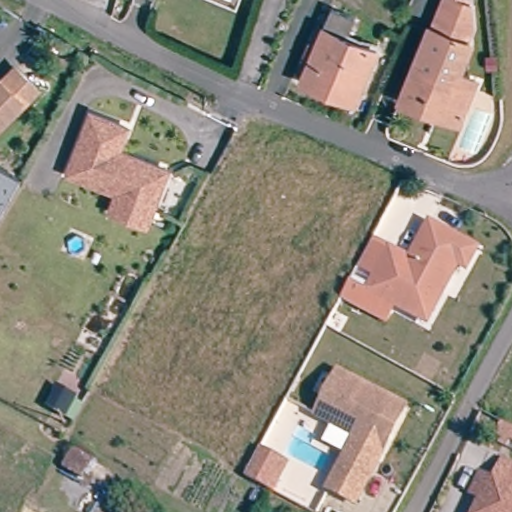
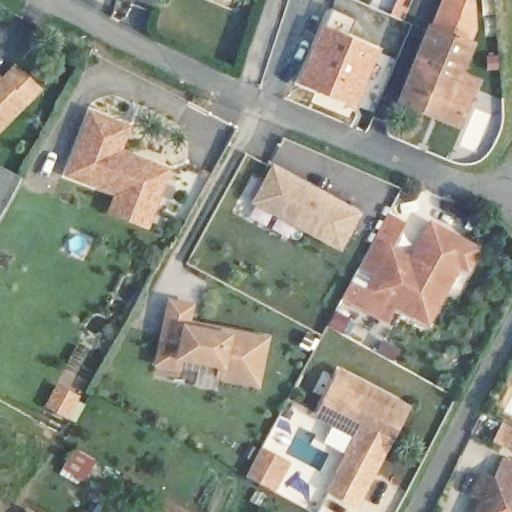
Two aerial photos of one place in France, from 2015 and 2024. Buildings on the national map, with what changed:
new [(377,0),(409,0),(410,1),(403,20),(374,7),(377,0)]
unchanged [(408,108),(403,106),(396,102),(424,39),(429,27),(433,28),(445,0),(466,0),(469,46),(467,50),(457,75),(472,82),(459,113),(452,127),(420,113),(408,108)]
unchanged [(295,84),(321,27),(373,51),(348,107),(295,84)]
unchanged [(0,85),(4,88),(17,74),(39,95),(0,136),(0,86),(0,85)]
unchanged [(105,208),(112,190),(63,170),(87,109),(124,124),(112,153),(120,157),(122,152),(163,168),(149,205),(141,223),(105,208)]
unchanged [(20,177),(0,212),(0,166),(20,177)]
new [(269,170),(355,216),(337,250),(251,204),(269,170)]
unchanged [(408,305),(393,298),(385,312),(340,288),(348,272),(366,282),(388,241),(409,252),(428,215),(476,241),(465,262),(457,258),(442,285),(426,315),(408,305)]
new [(187,309),(184,325),(184,326),(197,328),(263,342),(254,387),(215,379),(218,368),(177,360),(174,370),(154,366),(167,305),(187,309)]
unchanged [(328,485),(355,432),(315,411),(337,368),(400,401),(404,403),(382,444),(354,499),(328,485)]
unchanged [(57,385),(77,396),(66,416),(46,405),(57,385)]
unchanged [(512,441),(511,441),(507,450),(491,441),(500,424),(512,430),(512,441)]
unchanged [(95,460),(81,479),(61,468),(74,449),(95,460)]
unchanged [(284,467),(277,480),(270,494),(265,491),(243,479),(258,452),(271,460),(284,467)]
unchanged [(467,499),(478,475),(492,481),(500,464),(512,469),(512,512),(477,512),(481,505),(467,499)]

